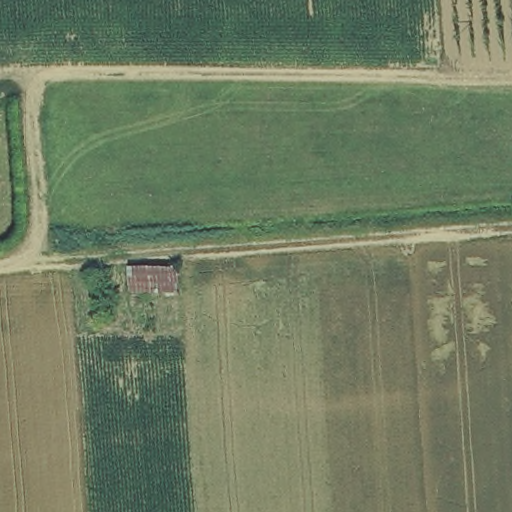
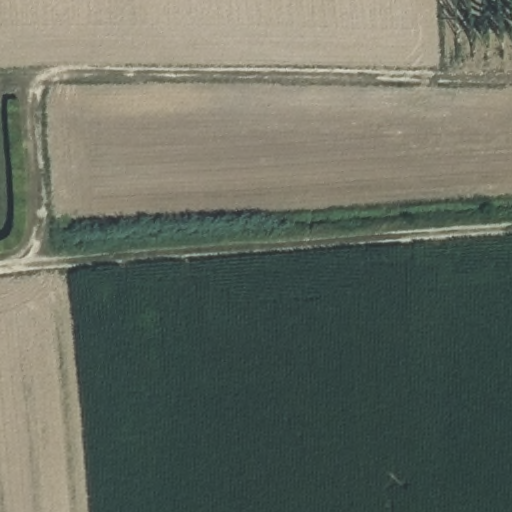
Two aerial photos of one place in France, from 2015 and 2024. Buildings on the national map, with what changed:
unchanged [(129,270),(180,268),(182,294),(129,296),(129,270)]

